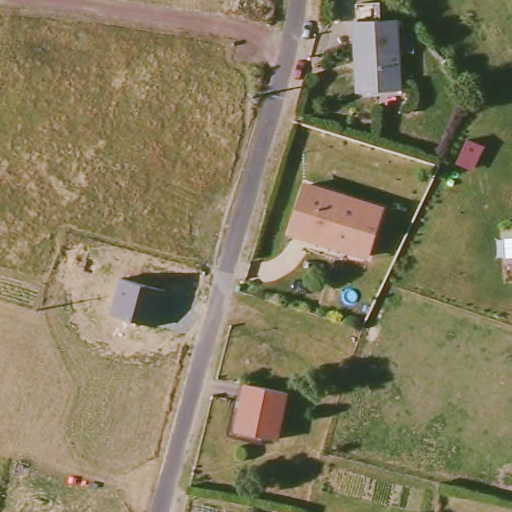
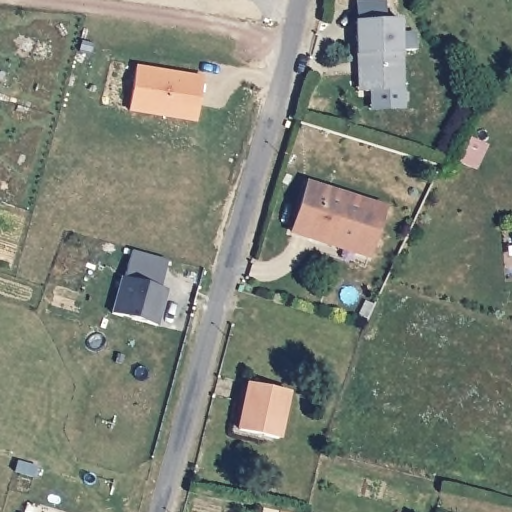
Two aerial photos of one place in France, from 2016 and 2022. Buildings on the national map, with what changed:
unchanged [(355,56),(354,23),(397,20),(398,36),(413,35),(413,51),(399,52),(401,90),(363,93),(357,93),(355,56)]
new [(126,111),(134,65),(202,77),(195,122),(126,111)]
unchanged [(367,256),(353,252),(355,247),(313,234),(312,239),(290,232),(305,184),(382,209),(367,256)]
unchanged [(119,278),(165,290),(155,325),(110,313),(119,278)]
unchanged [(247,384),(287,392),(277,439),(237,431),(247,384)]

